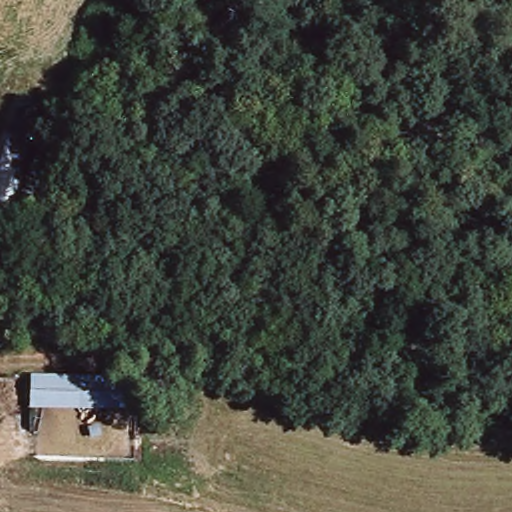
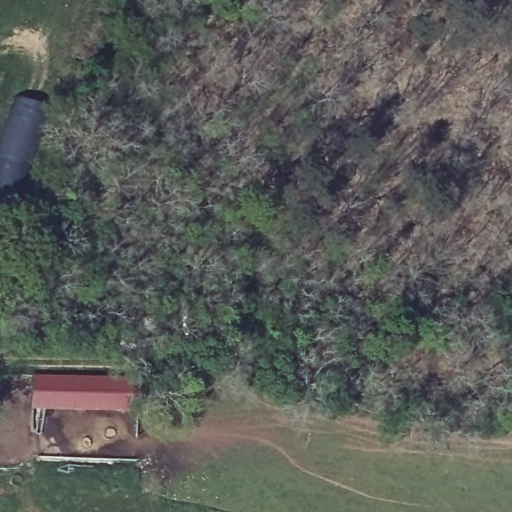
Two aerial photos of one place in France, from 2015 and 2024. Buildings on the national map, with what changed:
new [(25,147),(30,149),(15,185),(14,196),(0,194),(0,198),(0,166),(2,149),(10,150),(12,139),(5,136),(17,105),(24,107),(37,115),(25,147)]
unchanged [(32,379),(137,382),(135,413),(30,409),(32,379)]

